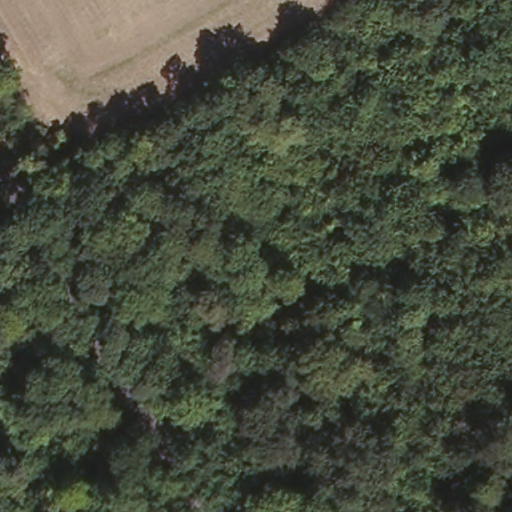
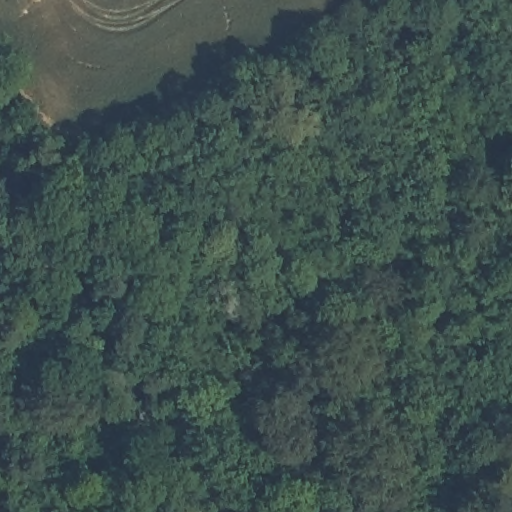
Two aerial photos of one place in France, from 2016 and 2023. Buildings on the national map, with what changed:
[]

